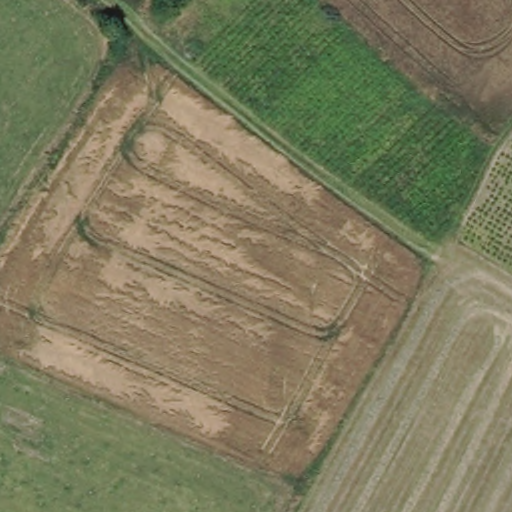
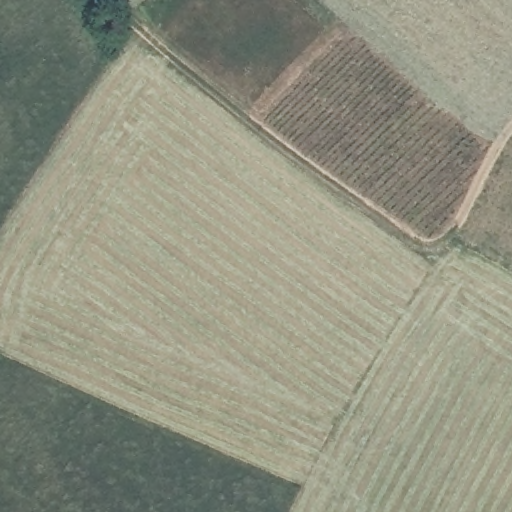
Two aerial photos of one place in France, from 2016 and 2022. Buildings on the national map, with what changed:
[]

